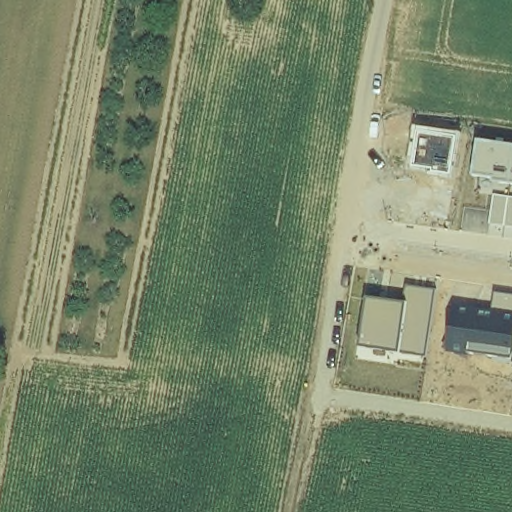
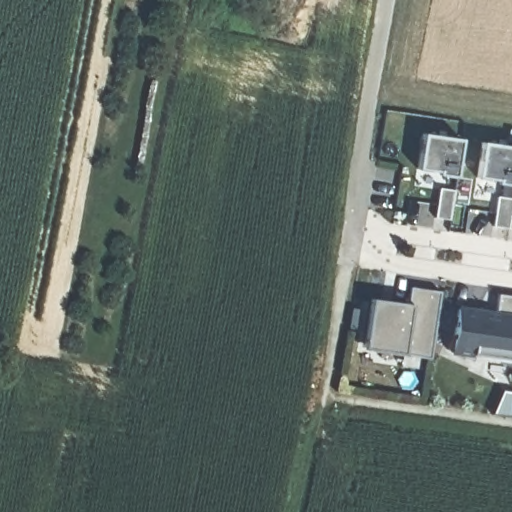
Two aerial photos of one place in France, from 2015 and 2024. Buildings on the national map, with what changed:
unchanged [(416,173),(422,129),(465,137),(459,180),(416,173)]
unchanged [(481,142),(512,146),(512,184),(475,178),(481,142)]
unchanged [(402,353),(366,347),(373,298),(409,304),(412,286),(439,290),(430,357),(402,353)]
unchanged [(456,306),(497,311),(500,293),(512,295),(512,361),(450,352),(456,306)]

